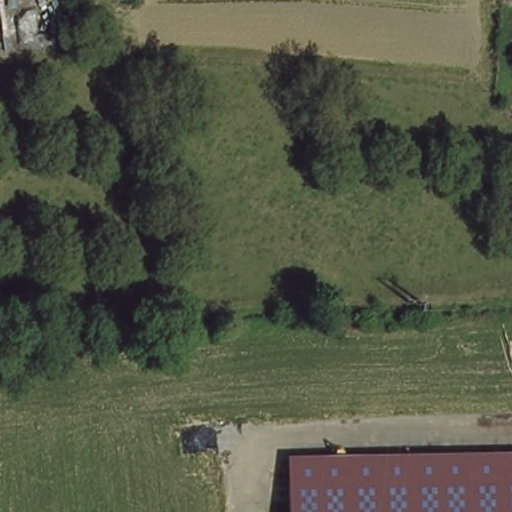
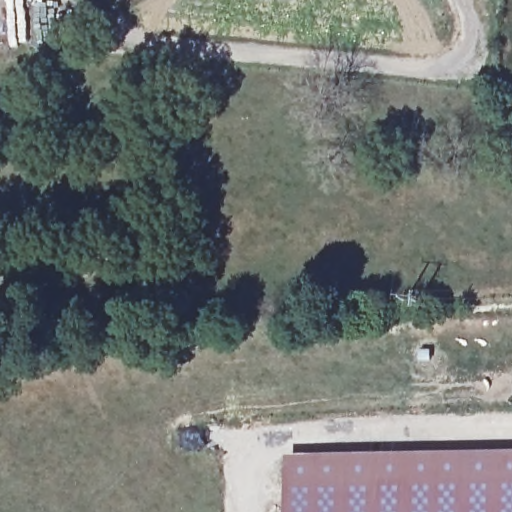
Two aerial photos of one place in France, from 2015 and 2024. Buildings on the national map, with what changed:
unchanged [(291,457),(512,453),(512,512),(291,512),(291,457)]

